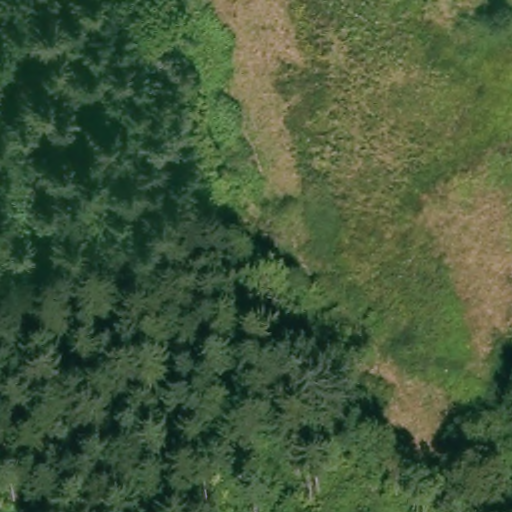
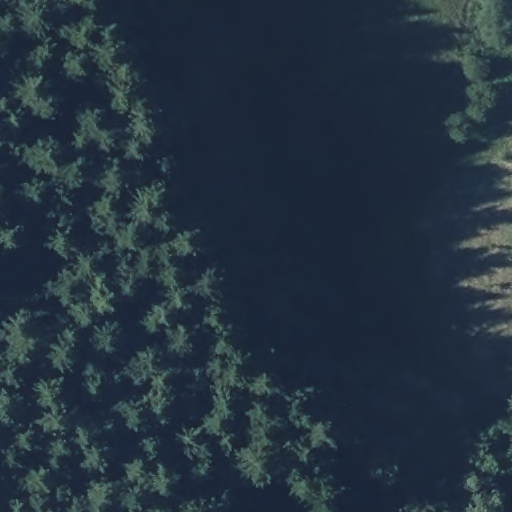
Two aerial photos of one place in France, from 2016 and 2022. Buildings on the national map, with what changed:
unchanged [(253,261),(258,271),(246,278),(241,268),(253,261)]

